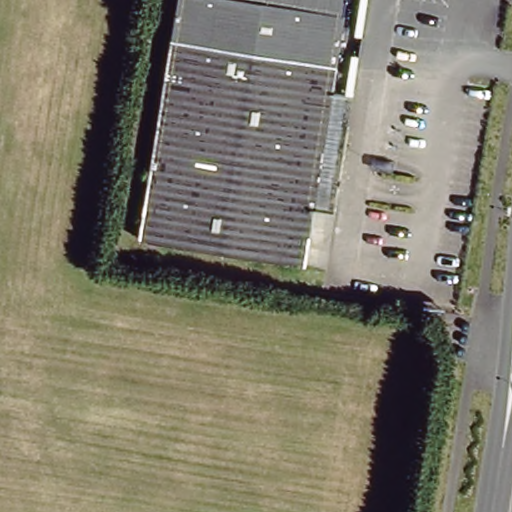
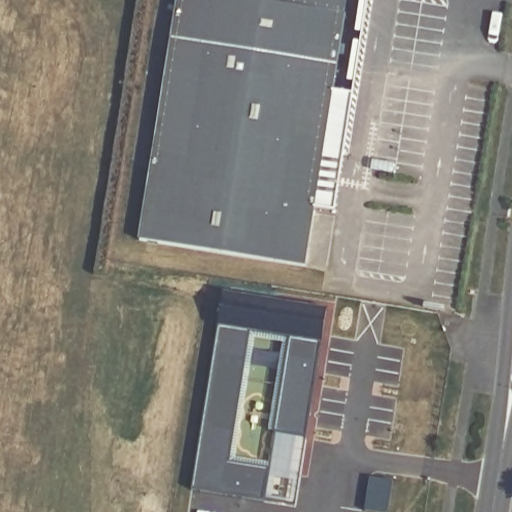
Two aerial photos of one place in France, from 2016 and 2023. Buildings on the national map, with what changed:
unchanged [(344,17),(331,92),(312,210),(303,266),(141,240),(152,171),(180,0),(240,0),(344,17)]
unchanged [(240,0),(347,0),(344,17),(240,0)]
unchanged [(358,0),(367,0),(362,34),(353,32),(358,0)]
unchanged [(350,51),(357,52),(352,96),(343,94),(350,51)]
unchanged [(352,96),(333,212),(312,210),(331,92),(352,96)]
new [(223,293),(327,309),(307,437),(275,432),(290,337),(250,331),(230,460),(270,466),(265,502),(191,490),(223,293)]
new [(275,432),(307,437),(296,506),(265,502),(275,432)]
new [(393,481),(388,512),(377,512),(365,511),(370,477),(393,481)]

